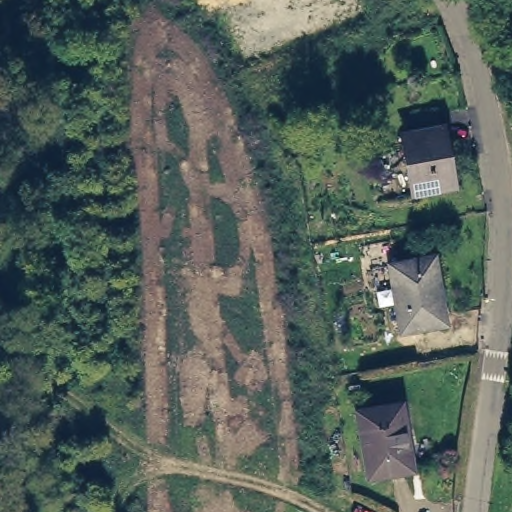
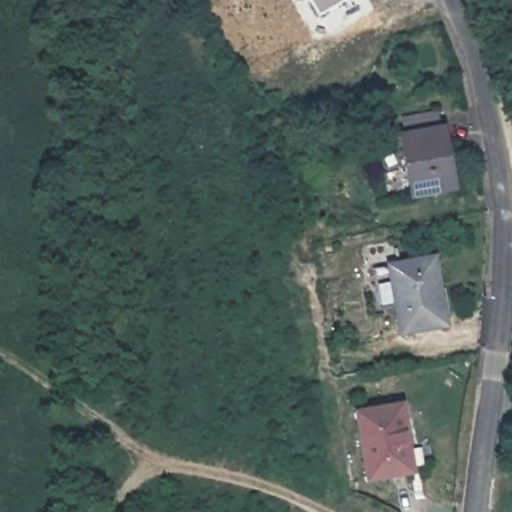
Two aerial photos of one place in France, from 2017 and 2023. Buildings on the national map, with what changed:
new [(310,0),(345,0),(319,15),(310,0)]
unchanged [(435,117),(439,136),(441,135),(452,191),(412,197),(402,144),(405,144),(402,123),(435,117)]
unchanged [(430,262),(442,326),(400,333),(389,269),(430,262)]
unchanged [(390,409),(403,472),(362,479),(348,415),(390,409)]

